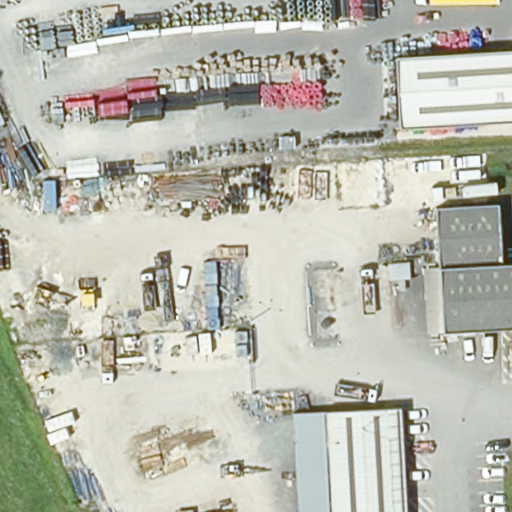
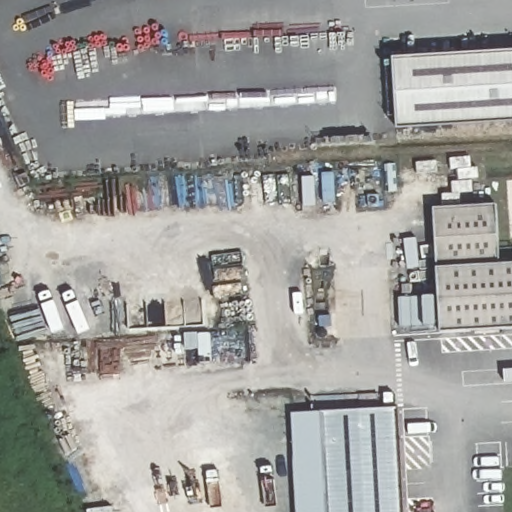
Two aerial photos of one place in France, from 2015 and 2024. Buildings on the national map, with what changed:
unchanged [(399,129),(396,57),(512,51),(512,122),(399,129)]
unchanged [(497,209),(501,269),(512,268),(512,333),(441,337),(434,213),(497,209)]
unchanged [(403,512),(328,512),(324,416),(398,412),(403,512)]
unchanged [(328,512),(296,512),(292,417),(324,416),(328,512)]

